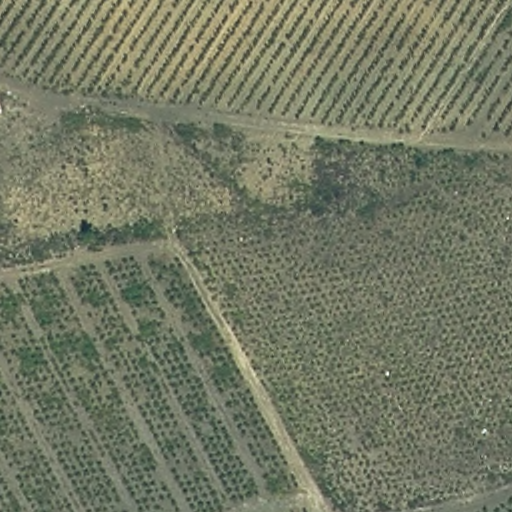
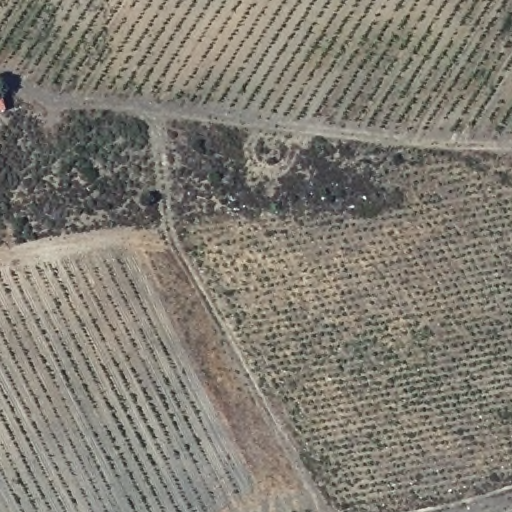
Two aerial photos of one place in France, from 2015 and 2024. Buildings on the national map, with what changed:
unchanged [(0,115),(0,91),(4,114),(0,115)]

